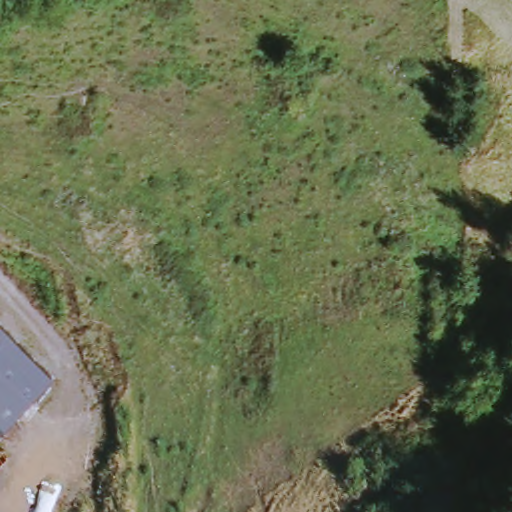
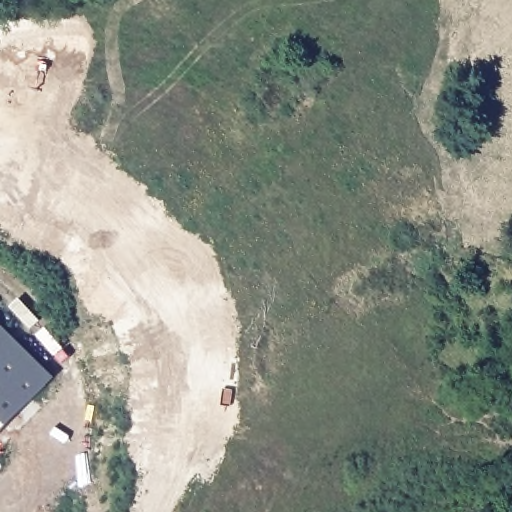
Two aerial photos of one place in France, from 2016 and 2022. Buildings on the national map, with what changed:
unchanged [(0,431),(0,324),(53,376),(0,431)]

